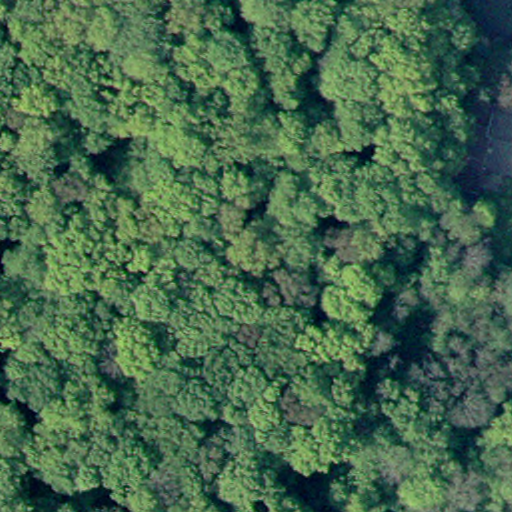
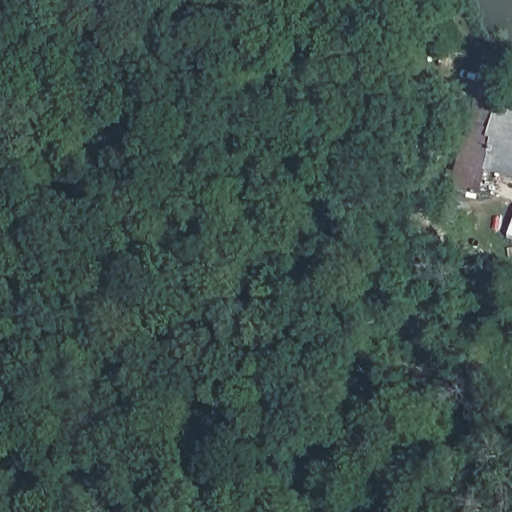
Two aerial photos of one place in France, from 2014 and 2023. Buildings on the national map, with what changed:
unchanged [(486,173),(482,181),(453,175),(464,123),(489,126),(498,107),(512,111),(512,179),(486,173)]

